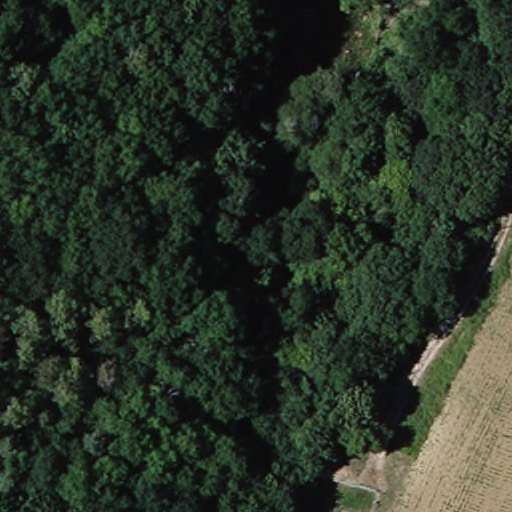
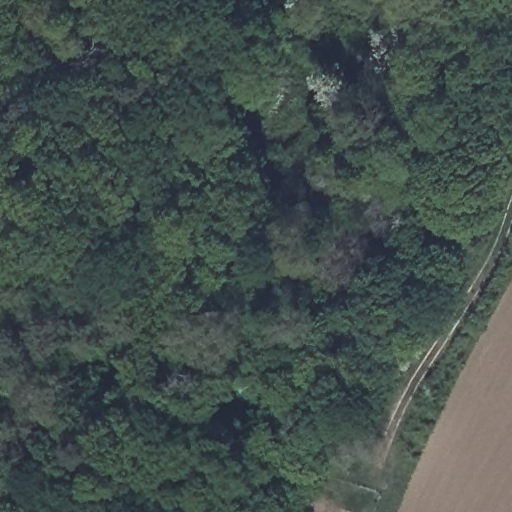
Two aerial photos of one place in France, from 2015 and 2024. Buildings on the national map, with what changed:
unchanged [(384,5),(384,0),(399,0),(399,6),(384,5)]

